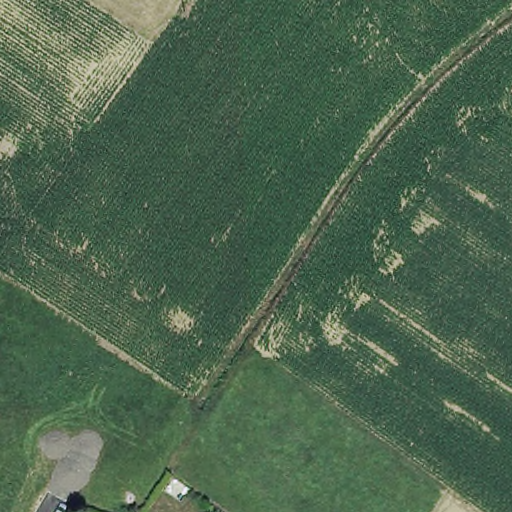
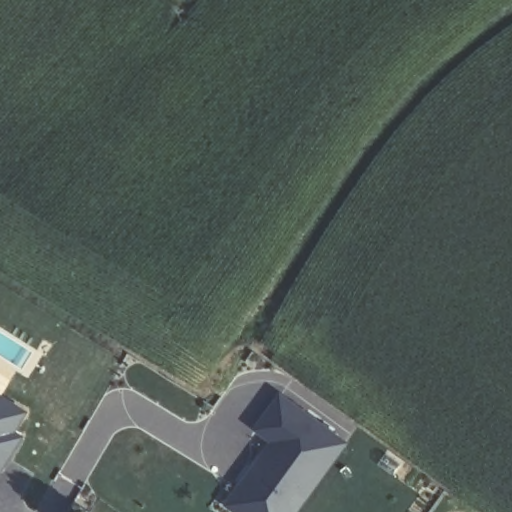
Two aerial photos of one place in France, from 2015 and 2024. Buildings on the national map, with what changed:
new [(19,430),(25,433),(0,474),(0,390),(31,408),(19,430)]
new [(346,441),(297,512),(231,512),(220,505),(265,441),(253,431),(277,390),(346,441)]

